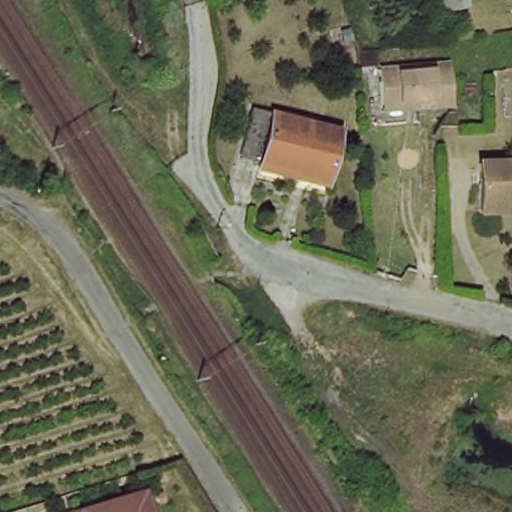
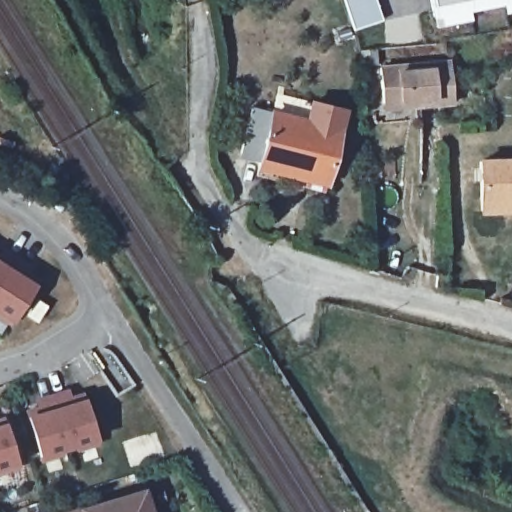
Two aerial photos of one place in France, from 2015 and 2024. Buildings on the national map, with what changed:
new [(383,19),(353,29),(344,0),(377,0),(383,19)]
new [(512,3),(436,17),(434,7),(432,0),(512,0),(512,3)]
demolished [(445,11),(443,0),(473,0),(474,4),(445,11)]
unchanged [(372,70),(442,61),(447,102),(413,106),(413,100),(377,105),(372,70)]
unchanged [(272,172),(273,164),(252,157),(262,113),(353,132),(339,187),(272,172)]
demolished [(10,142),(20,133),(34,125),(61,167),(46,176),(35,183),(10,142)]
unchanged [(484,160),(512,158),(512,210),(486,212),(484,160)]
new [(0,254),(5,248),(35,267),(29,272),(41,280),(12,328),(0,321),(0,253),(0,254)]
new [(25,411),(37,407),(35,400),(71,390),(73,400),(86,397),(101,447),(41,463),(27,416),(25,411)]
new [(5,415),(6,422),(20,470),(0,476),(0,416),(5,415)]
unchanged [(146,492),(152,512),(78,512),(83,511),(146,492)]

